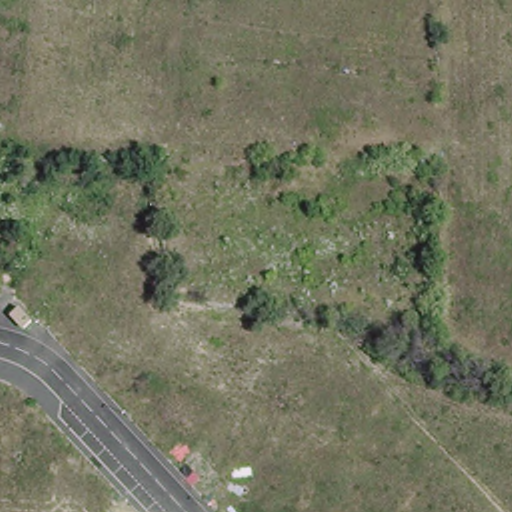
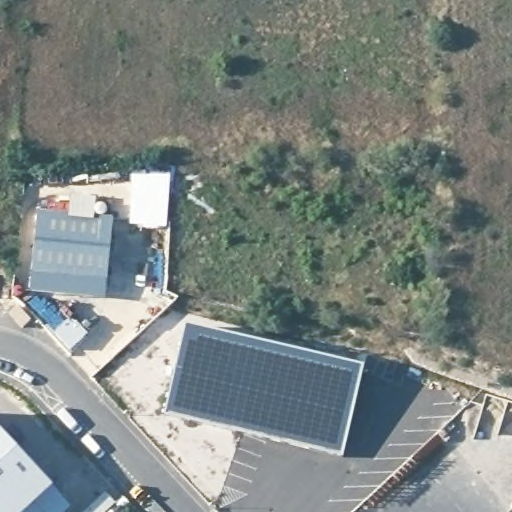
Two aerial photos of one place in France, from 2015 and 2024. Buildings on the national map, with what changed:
new [(134,190),(132,171),(167,168),(174,169),(168,224),(133,219),(134,190)]
new [(32,292),(40,209),(70,213),(72,194),(97,197),(97,203),(107,203),(107,214),(112,215),(107,299),(32,292)]
new [(364,366),(344,457),(166,415),(187,324),(364,366)]
new [(54,488),(73,509),(69,512),(0,512),(0,431),(54,488)]
new [(113,509),(115,512),(110,512),(113,509)]

